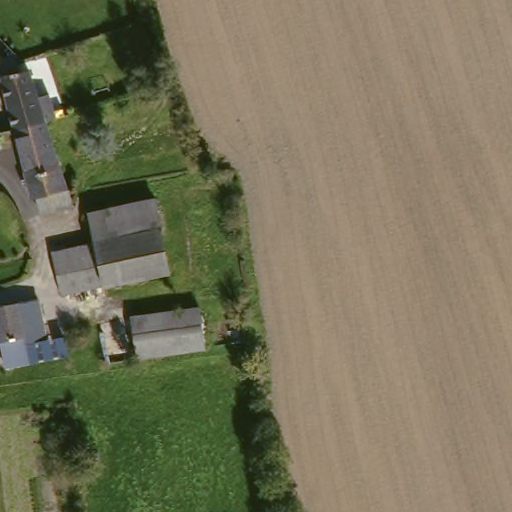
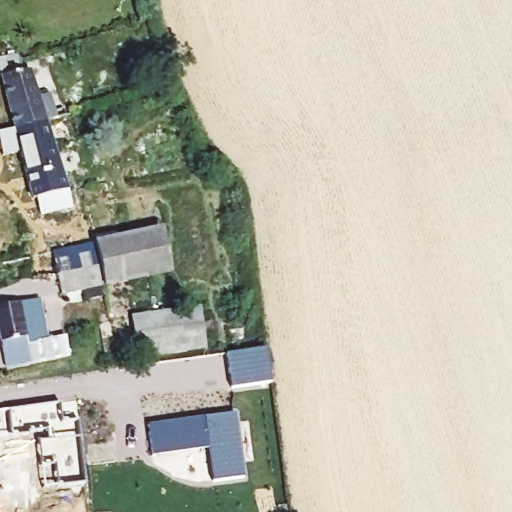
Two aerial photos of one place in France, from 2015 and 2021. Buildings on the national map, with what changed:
unchanged [(23,63),(31,88),(41,87),(49,111),(40,113),(10,119),(0,85),(0,67),(23,63)]
unchanged [(40,113),(66,199),(62,200),(42,205),(38,188),(30,190),(10,119),(40,113)]
unchanged [(88,215),(152,202),(166,277),(102,289),(94,244),(88,215)]
unchanged [(102,289),(60,297),(53,252),(94,244),(102,289)]
unchanged [(42,298),(47,336),(64,335),(66,355),(6,365),(0,319),(0,305),(42,298)]
unchanged [(200,305),(205,346),(137,357),(131,315),(200,305)]
new [(270,384),(231,388),(226,354),(265,349),(270,384)]
new [(244,478),(211,483),(207,450),(151,457),(147,427),(236,414),(244,478)]

